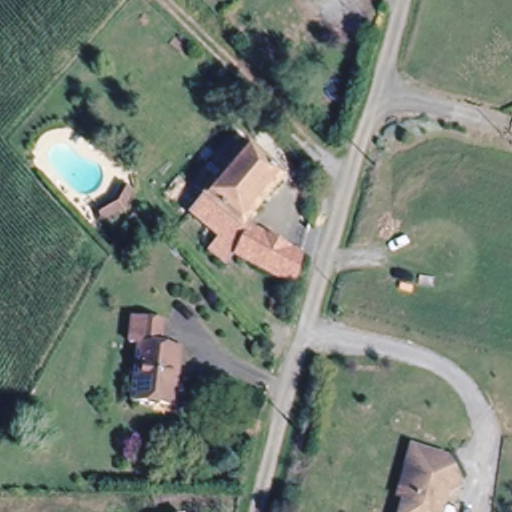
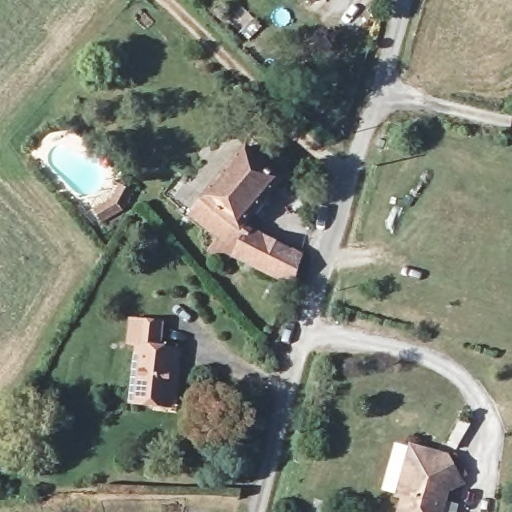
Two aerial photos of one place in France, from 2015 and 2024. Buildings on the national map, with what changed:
unchanged [(311,0),(325,0),(316,7),(311,0)]
unchanged [(235,248),(194,210),(250,145),(283,176),(244,221),(248,232),(235,248)]
unchanged [(296,280),(232,254),(235,248),(248,232),(301,256),(296,280)]
unchanged [(161,413),(140,411),(143,352),(136,352),(136,322),(165,323),(165,352),(187,353),(184,402),(183,415),(161,413)]
unchanged [(437,492),(434,503),(443,505),(442,512),(401,512),(404,497),(398,496),(406,446),(431,450),(456,467),(439,493),(437,492)]

